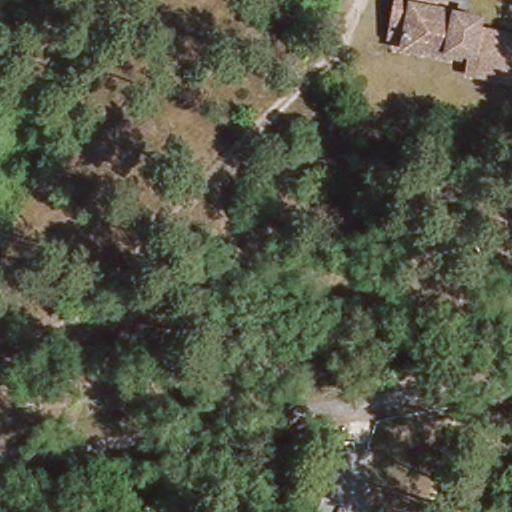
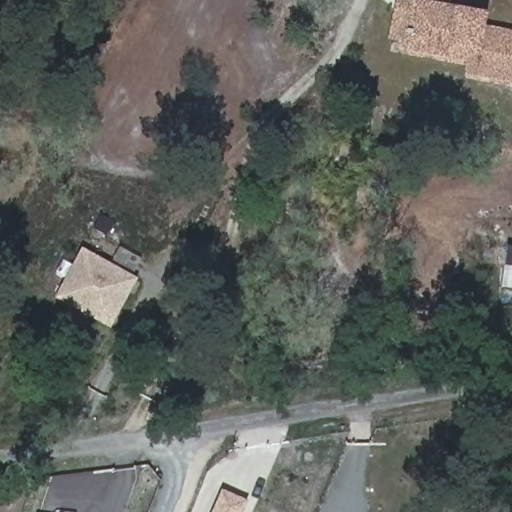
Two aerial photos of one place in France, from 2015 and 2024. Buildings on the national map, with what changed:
unchanged [(484,11),(481,23),(512,29),(512,72),(471,64),(475,46),(453,41),(451,51),(406,43),(389,39),(397,0),(445,0),(444,4),(484,11)]
new [(512,246),(512,290),(502,289),(508,245),(512,246)]
new [(139,279),(111,329),(55,298),(81,248),(139,279)]
new [(246,502),(241,512),(214,512),(223,492),(246,502)]

